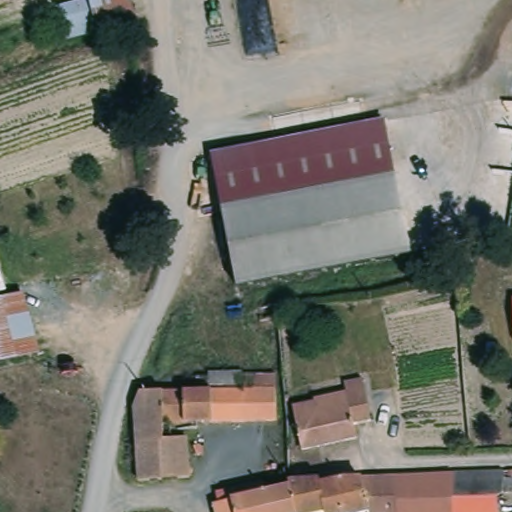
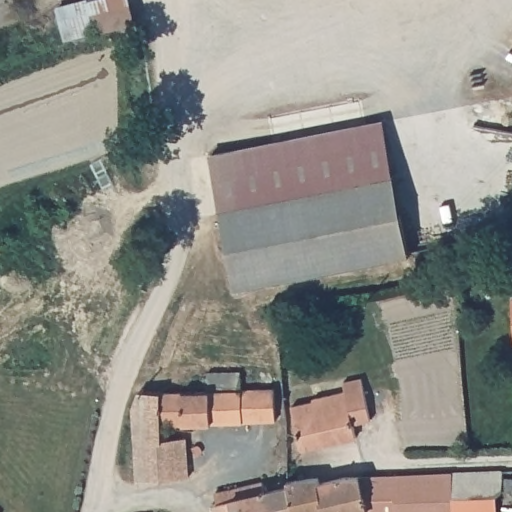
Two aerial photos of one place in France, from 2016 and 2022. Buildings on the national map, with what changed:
unchanged [(64,41),(56,7),(85,0),(130,0),(136,29),(64,41)]
unchanged [(368,184),(221,212),(216,180),(364,152),(368,184)]
unchanged [(397,177),(413,254),(236,288),(221,212),(368,184),(397,177)]
demolished [(0,364),(0,301),(25,295),(38,355),(0,364)]
unchanged [(141,411),(146,402),(151,397),(152,395),(184,392),(184,378),(205,377),(205,369),(240,368),(241,387),(274,387),(274,416),(242,418),(167,423),(170,436),(185,437),(188,477),(140,483),(136,456),(134,448),(138,423),(141,411)]
unchanged [(358,438),(305,451),(298,422),(294,406),(346,391),(344,381),(360,377),(368,407),(371,417),(357,421),(358,438)]
unchanged [(372,477),(512,473),(512,496),(494,496),(495,512),(368,512),(360,478),(372,477)]
unchanged [(355,476),(366,512),(330,512),(328,512),(290,512),(287,491),(355,476)]
unchanged [(212,497),(259,487),(262,497),(287,491),(290,512),(209,512),(209,508),(214,507),(212,497)]

